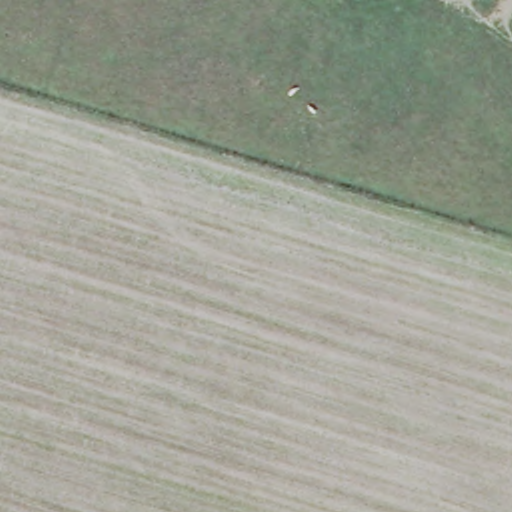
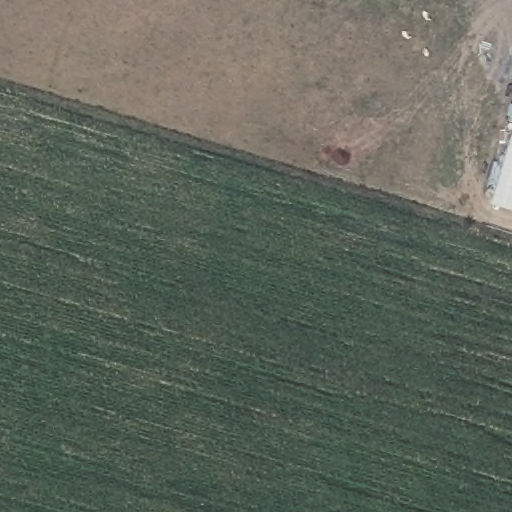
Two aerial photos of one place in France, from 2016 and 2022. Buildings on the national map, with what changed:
new [(512,143),(512,212),(493,206),(512,143)]

